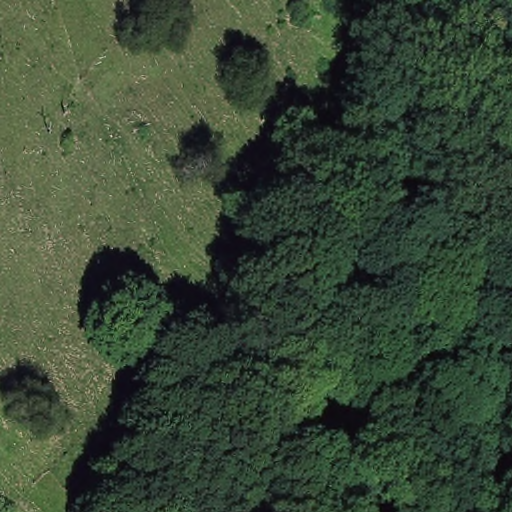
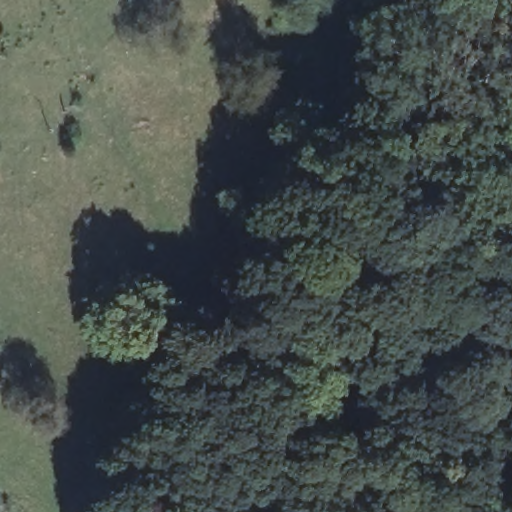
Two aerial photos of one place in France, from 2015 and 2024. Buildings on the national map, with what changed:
[]

